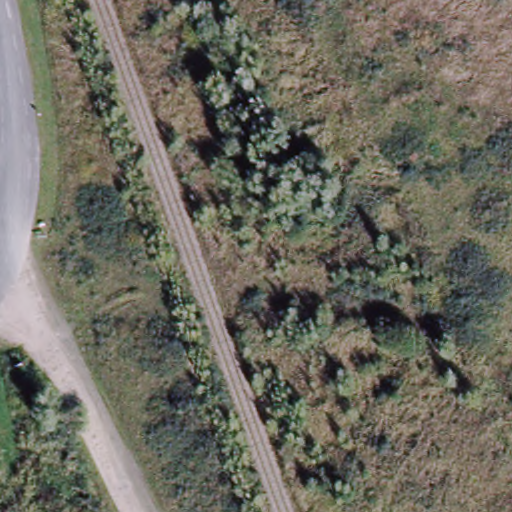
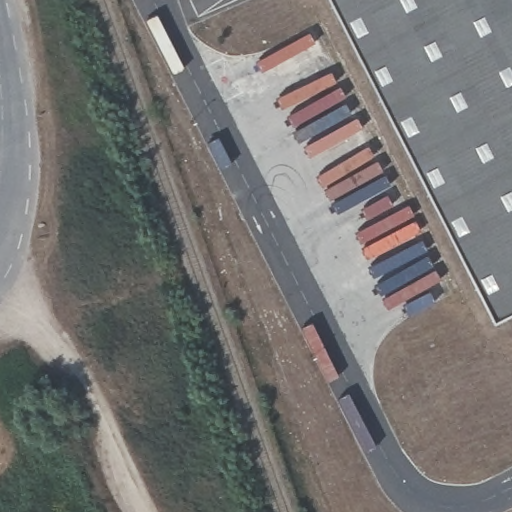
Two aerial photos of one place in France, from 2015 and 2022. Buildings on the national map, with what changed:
new [(494,320),(331,0),(512,0),(512,311),(494,320)]

